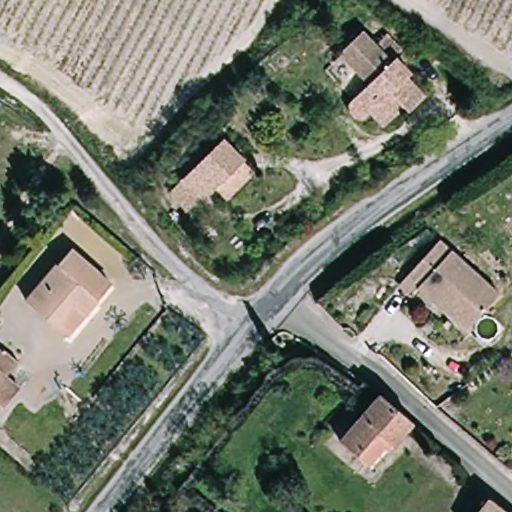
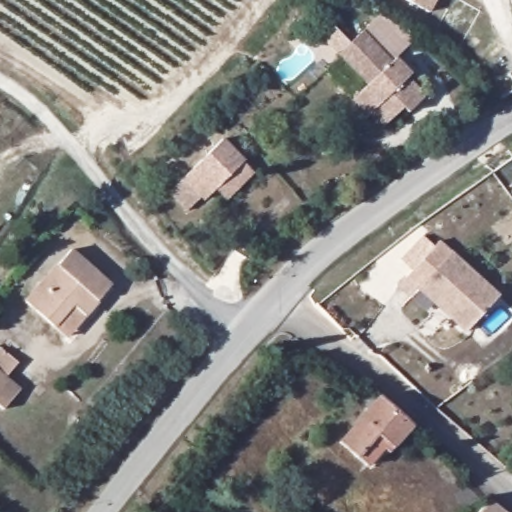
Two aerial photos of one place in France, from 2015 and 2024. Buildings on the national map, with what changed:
new [(407,0),(437,0),(430,12),(407,0)]
unchanged [(388,61),(395,55),(412,73),(405,79),(422,97),(408,111),(402,106),(382,125),(370,112),(360,115),(349,114),(346,105),(348,96),(320,68),(336,54),(360,32),(388,61)]
unchanged [(200,198),(197,196),(185,207),(167,189),(220,136),(241,157),(252,167),(223,195),(213,186),(200,198)]
unchanged [(452,310),(421,282),(416,287),(403,276),(435,242),(495,295),(463,330),(447,316),(452,310)]
unchanged [(55,321),(25,299),(70,247),(113,281),(88,309),(68,332),(55,321)]
unchanged [(3,410),(0,407),(0,350),(15,363),(5,375),(20,387),(3,410)]
unchanged [(336,440),(377,393),(412,420),(394,441),(387,436),(364,464),(336,440)]
unchanged [(488,499),(505,512),(478,512),(488,499)]

